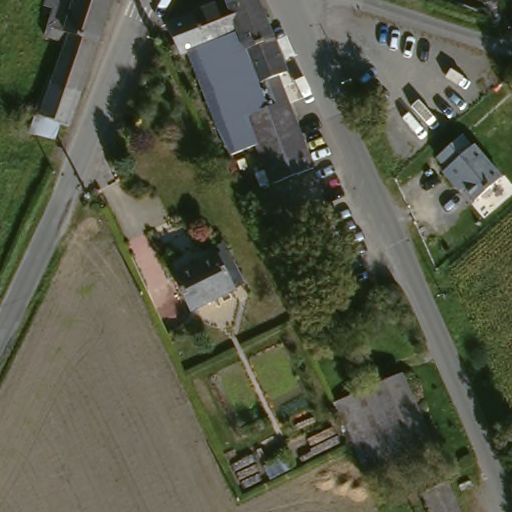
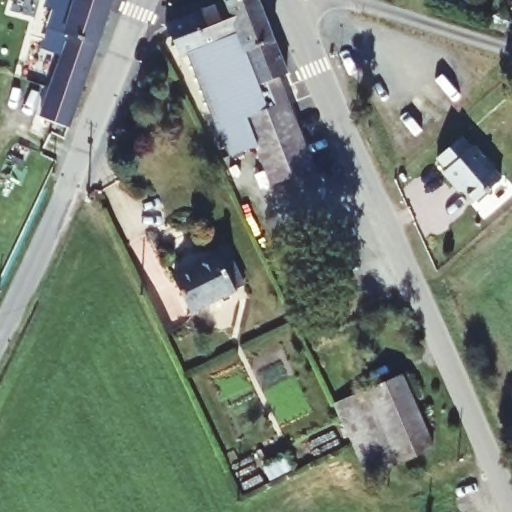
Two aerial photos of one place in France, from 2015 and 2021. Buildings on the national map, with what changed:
unchanged [(70,125),(65,124),(61,139),(37,130),(70,33),(51,26),(57,10),(45,6),(47,0),(114,0),(70,121),(70,125)]
unchanged [(271,186),(244,119),(217,130),(187,58),(175,29),(190,24),(189,18),(240,0),(250,0),(283,82),(276,84),(312,169),(271,186)]
unchanged [(502,179),(478,203),(461,185),(457,189),(445,177),(449,173),(438,163),(461,140),(472,151),(473,149),(502,179)]
unchanged [(121,150),(120,157),(111,154),(113,148),(121,150)]
unchanged [(219,257),(236,291),(192,315),(174,280),(219,257)]
unchanged [(394,378),(426,453),(394,468),(363,390),(394,378)]
unchanged [(363,390),(394,468),(378,473),(365,478),(335,402),(346,397),(363,390)]
unchanged [(447,487),(457,512),(429,512),(423,497),(447,487)]

